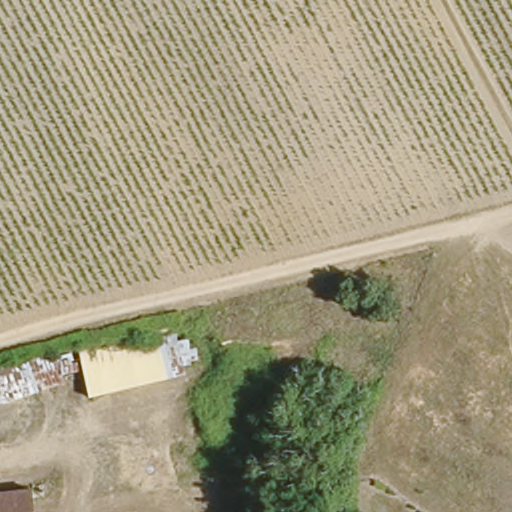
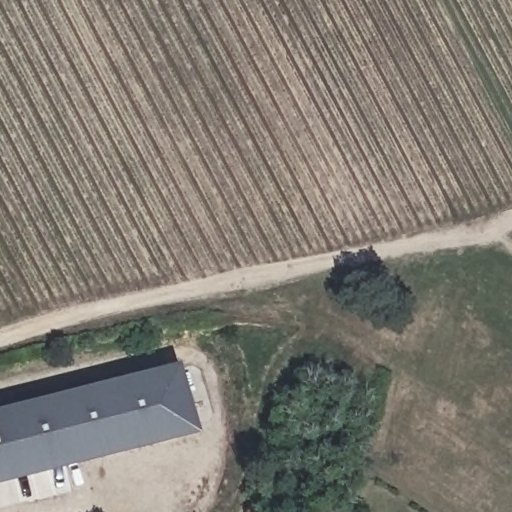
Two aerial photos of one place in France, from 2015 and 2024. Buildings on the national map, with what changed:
demolished [(89,395),(83,377),(0,403),(0,362),(13,359),(60,347),(61,357),(179,333),(185,372),(89,395)]
new [(179,362),(197,432),(0,482),(0,407),(179,362)]
demolished [(34,512),(0,512),(0,486),(32,481),(34,512)]

